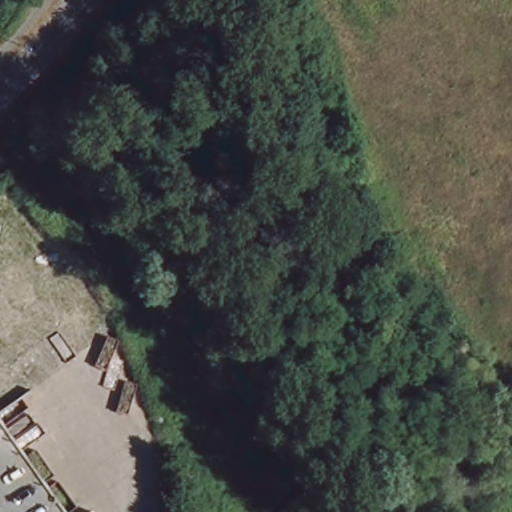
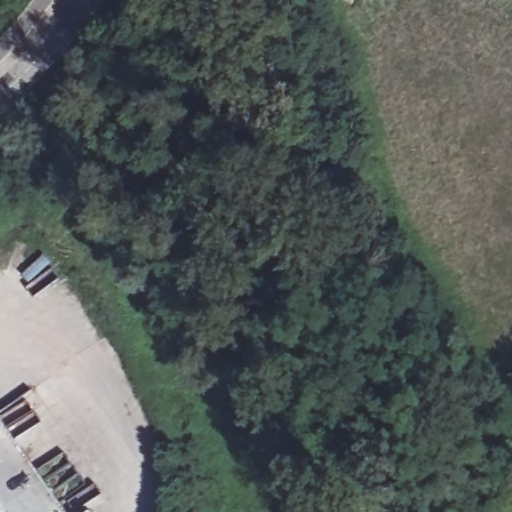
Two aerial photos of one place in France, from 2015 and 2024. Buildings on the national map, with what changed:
unchanged [(90,508),(92,512),(83,512),(90,508)]

